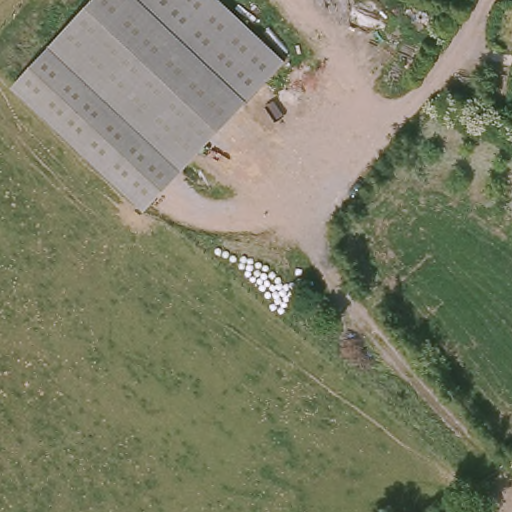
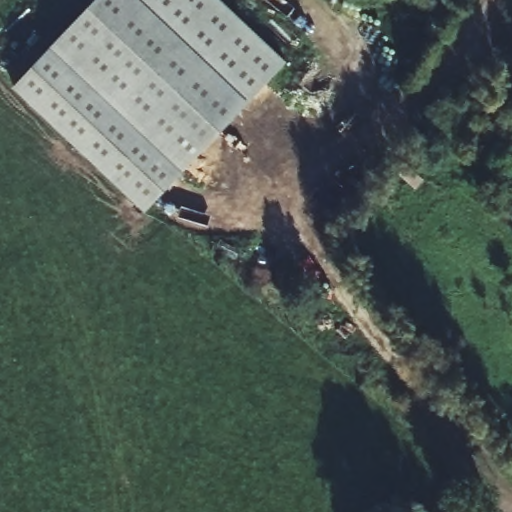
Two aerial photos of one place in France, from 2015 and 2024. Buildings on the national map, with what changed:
unchanged [(10,88),(93,0),(223,0),(288,61),(146,212),(10,88)]

